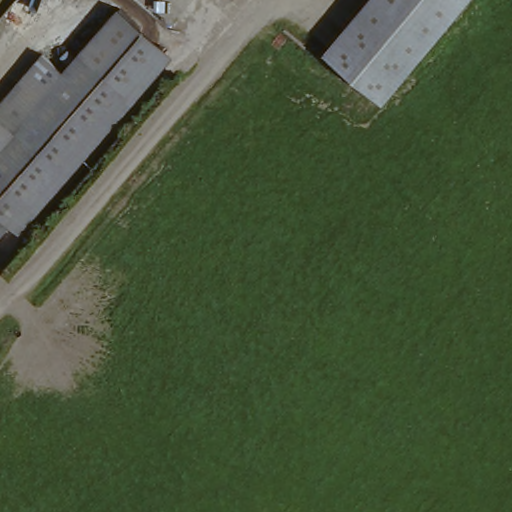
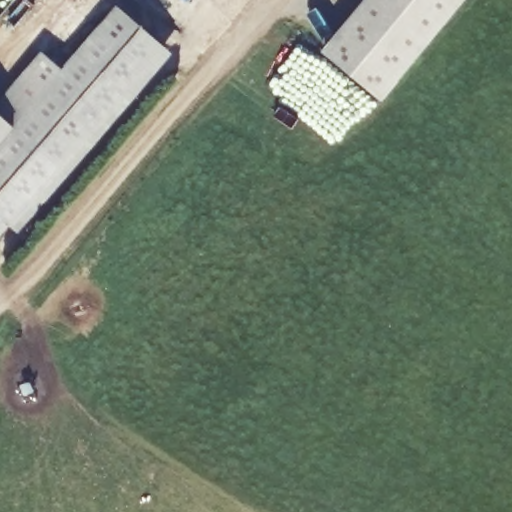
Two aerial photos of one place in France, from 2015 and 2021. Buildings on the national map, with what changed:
unchanged [(321,58),(368,0),(465,0),(379,105),(321,58)]
unchanged [(169,50),(15,225),(0,212),(0,114),(19,130),(66,76),(124,9),(169,50)]
unchanged [(0,114),(0,113),(48,59),(66,76),(19,130),(0,114)]
unchanged [(0,212),(15,225),(0,242),(0,212)]

